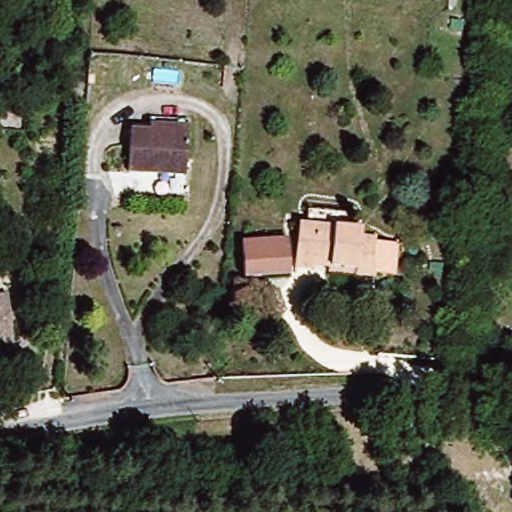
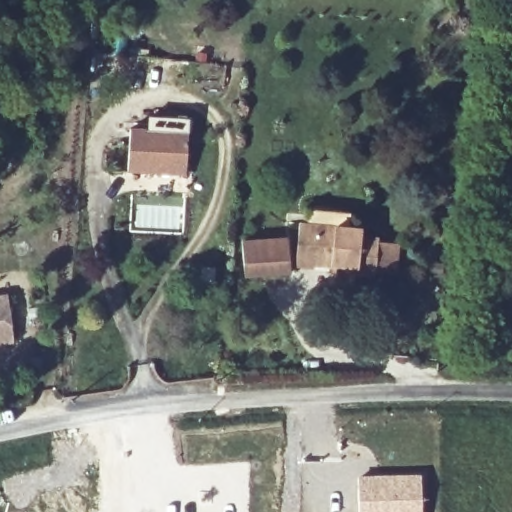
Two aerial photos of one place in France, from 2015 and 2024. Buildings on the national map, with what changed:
unchanged [(135,169),(139,130),(154,130),(155,117),(194,119),(194,133),(190,172),(135,169)]
unchanged [(333,268),(298,266),(302,227),(307,227),(309,212),(350,215),(349,231),(366,232),(365,240),(381,240),(376,280),(360,279),(333,277),(333,268)]
unchanged [(287,238),(290,276),(244,280),(241,241),(287,238)]
unchanged [(0,292),(14,290),(21,335),(0,339),(0,292)]
new [(420,473),(422,512),(358,512),(357,474),(420,473)]

